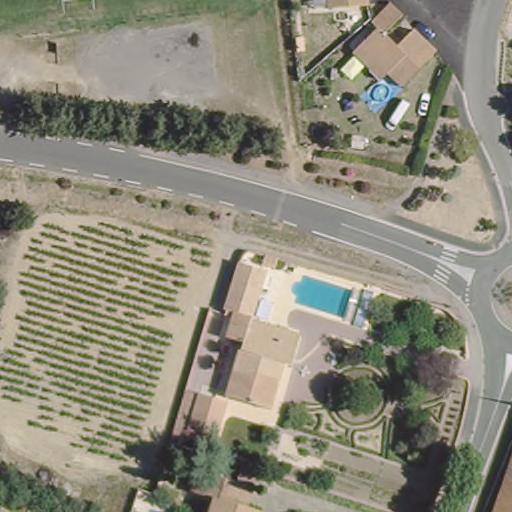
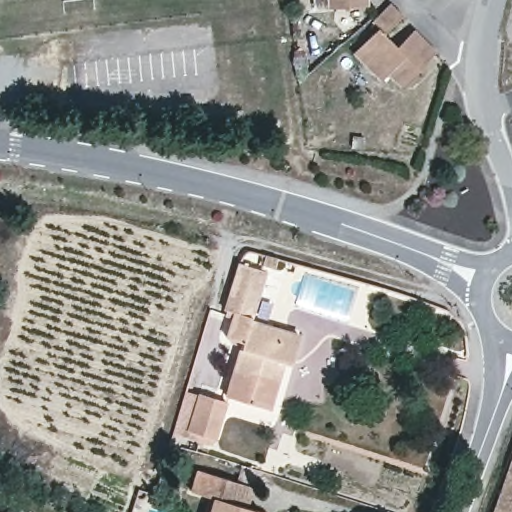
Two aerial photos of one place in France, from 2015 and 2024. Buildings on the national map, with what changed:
unchanged [(328,9),(327,0),(361,0),(361,7),(328,9)]
unchanged [(412,30),(422,31),(436,47),(405,84),(390,70),(378,83),(360,66),(362,63),(349,50),(369,27),(367,22),(375,11),(387,0),(390,0),(394,0),(400,7),(379,32),(395,48),(412,30)]
unchanged [(237,311),(232,308),(250,258),(273,267),(255,317),(301,334),(290,363),(282,360),(267,409),(223,394),(242,339),(228,334),(237,311)]
unchanged [(221,400),(210,436),(181,427),(193,391),(221,400)]
unchanged [(505,476),(512,457),(512,512),(493,512),(505,476)]
unchanged [(187,500),(172,495),(179,474),(230,491),(223,511),(225,512),(184,512),(187,500)]

